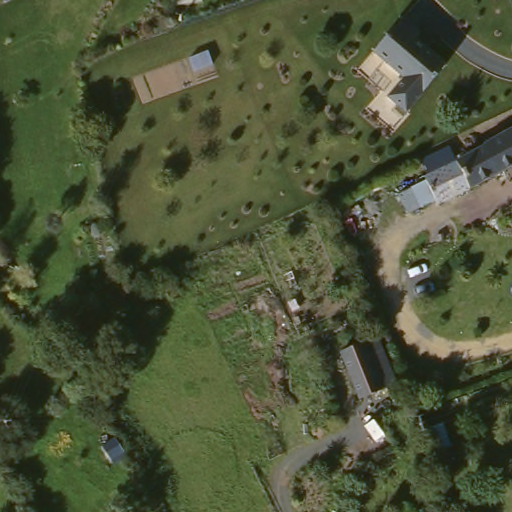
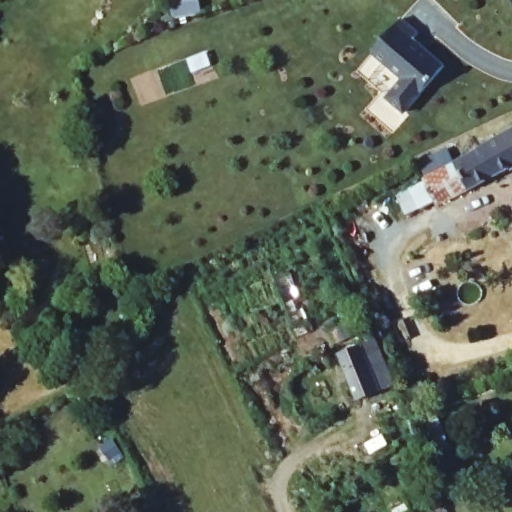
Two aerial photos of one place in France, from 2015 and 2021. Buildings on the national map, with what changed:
unchanged [(420,37),(417,41),(448,67),(407,120),(386,104),(404,79),(376,60),(405,24),(420,37)]
unchanged [(512,171),(496,178),(493,180),(447,202),(443,198),(435,198),(429,197),(428,190),(434,185),(434,179),(512,137),(512,171)]
unchanged [(379,337),(399,388),(358,401),(343,351),(379,337)]

